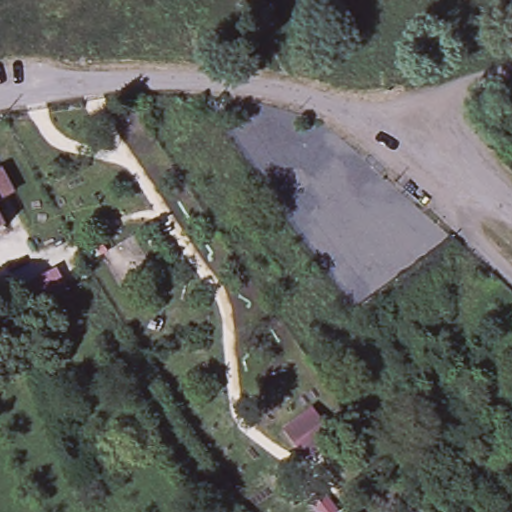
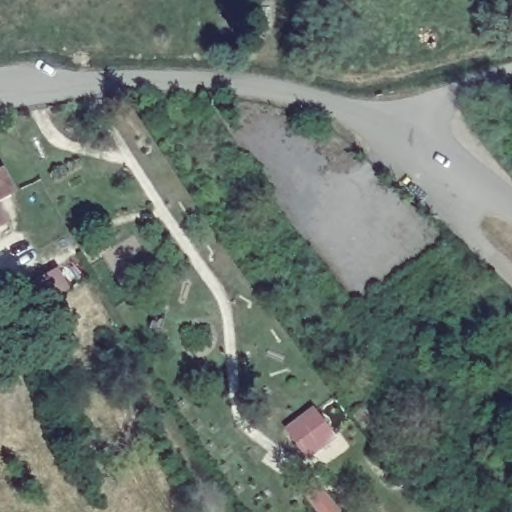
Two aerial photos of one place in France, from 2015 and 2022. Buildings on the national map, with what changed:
unchanged [(19,189),(0,198),(0,171),(7,168),(19,189)]
unchanged [(0,204),(12,226),(0,231),(0,204)]
unchanged [(42,309),(60,298),(74,321),(56,330),(42,309)]
unchanged [(285,437),(290,434),(314,415),(332,440),(307,459),(304,461),(285,437)]

